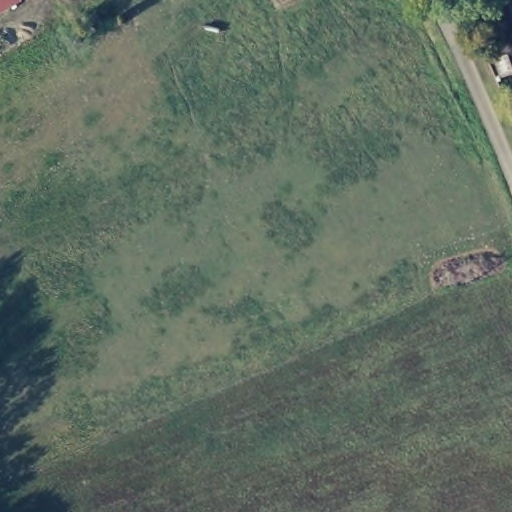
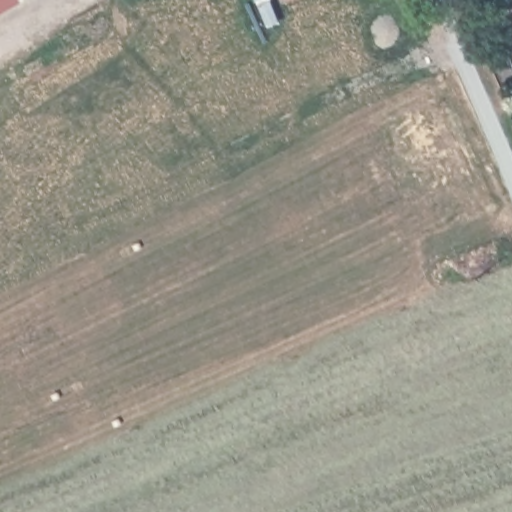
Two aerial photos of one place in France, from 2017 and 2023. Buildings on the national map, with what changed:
unchanged [(18,3),(0,13),(0,0),(17,0),(18,3)]
unchanged [(283,9),(279,0),(299,0),(283,9)]
unchanged [(512,3),(512,36),(503,37),(502,4),(512,3)]

